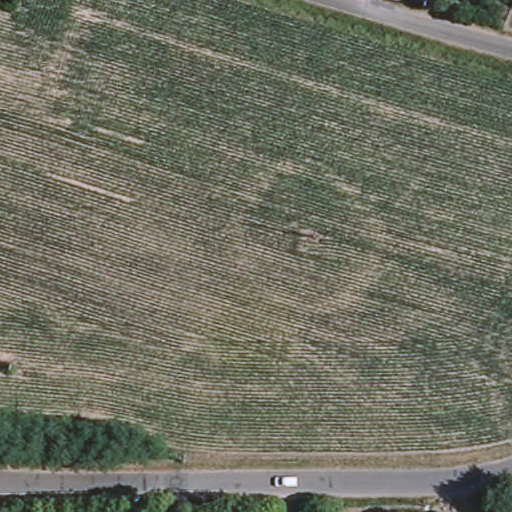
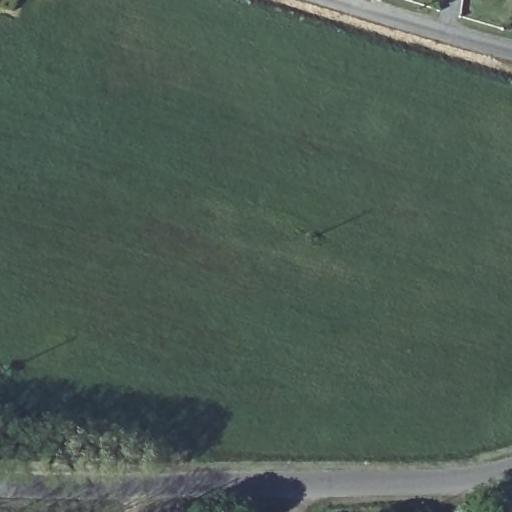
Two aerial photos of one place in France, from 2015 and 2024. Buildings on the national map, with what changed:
unchanged [(508,1),(509,0),(512,0),(512,3),(508,1)]

